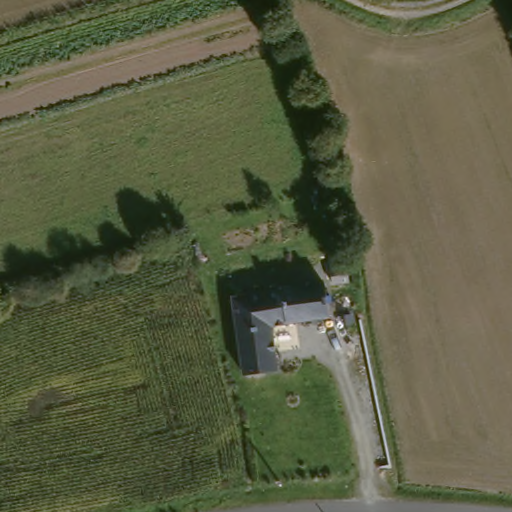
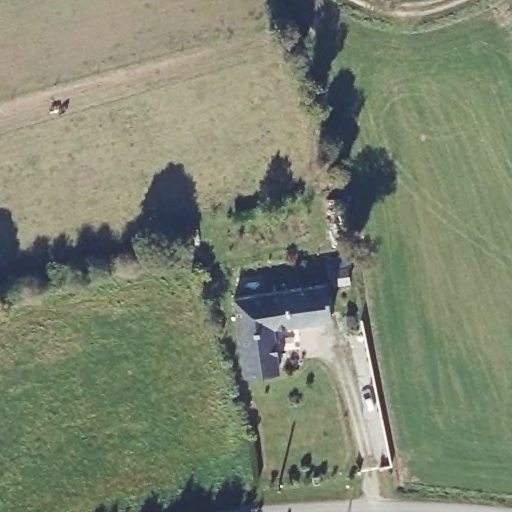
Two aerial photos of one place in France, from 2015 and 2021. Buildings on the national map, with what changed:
unchanged [(229,305),(322,292),(324,322),(265,330),(234,334),(229,305)]
unchanged [(265,330),(272,375),(241,378),(234,334),(265,330)]

